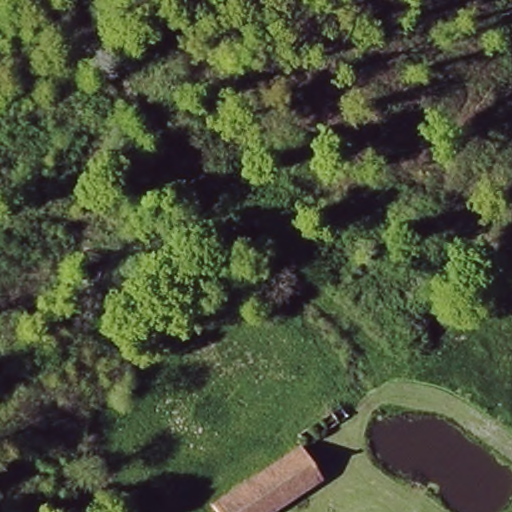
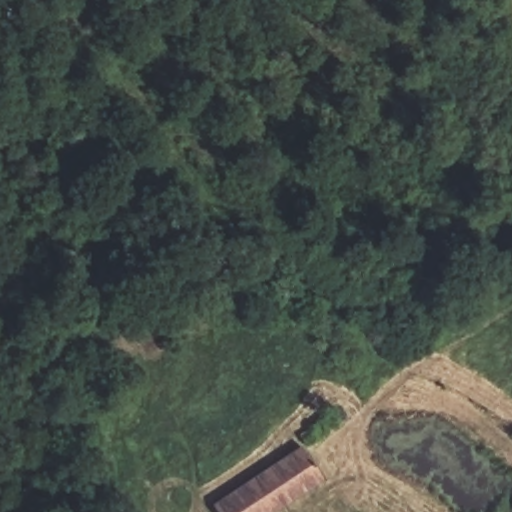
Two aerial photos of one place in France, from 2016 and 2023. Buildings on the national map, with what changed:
unchanged [(278,512),(251,512),(237,483),(303,443),(323,483),(278,512)]
unchanged [(237,483),(251,512),(219,512),(214,497),(237,483)]

